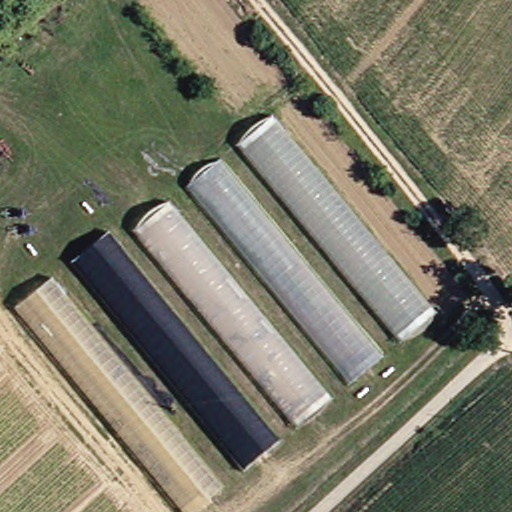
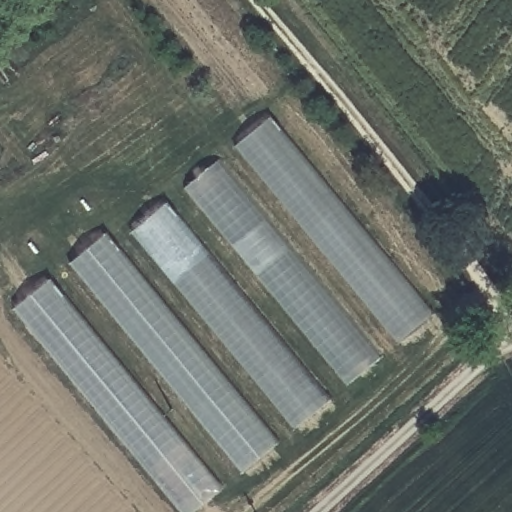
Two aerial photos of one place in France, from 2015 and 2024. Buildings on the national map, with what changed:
unchanged [(431,317),(192,512),(179,512),(12,310),(268,123),(431,317)]

